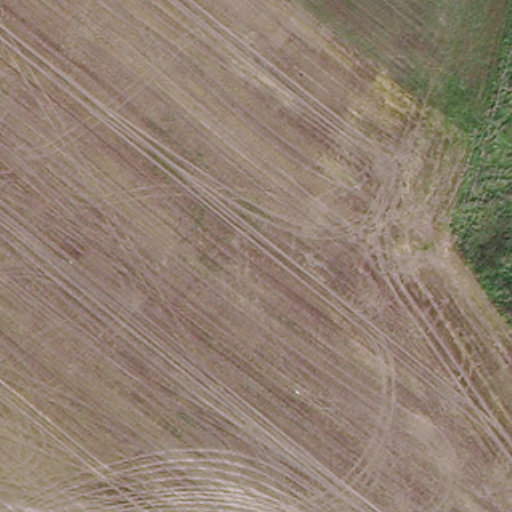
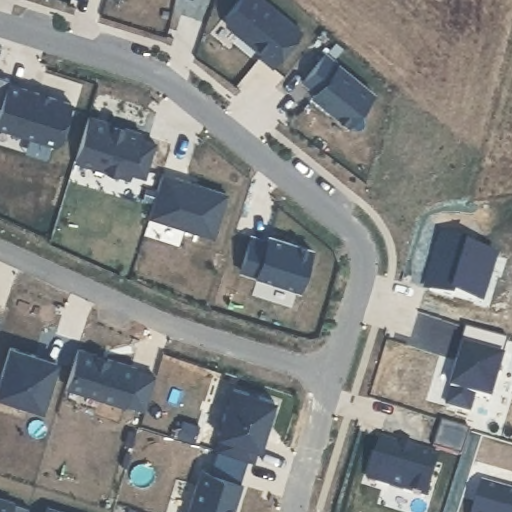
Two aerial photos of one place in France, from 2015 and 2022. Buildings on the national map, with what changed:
new [(261,0),(300,32),(272,68),(259,57),(261,55),(225,26),(224,19),(240,0),(261,0)]
new [(324,56),(372,94),(347,126),(312,97),(315,94),(302,84),(324,56)]
new [(8,80),(6,87),(0,108),(0,78),(8,80)]
new [(6,87),(20,92),(21,89),(39,95),(38,97),(47,100),(48,97),(71,105),(60,141),(53,145),(0,128),(0,108),(6,87)]
new [(88,119),(111,126),(110,128),(123,132),(124,130),(141,135),(140,140),(155,145),(145,177),(130,172),(128,178),(75,161),(88,119)]
new [(161,176),(226,195),(212,238),(148,218),(161,176)]
new [(267,242),(269,237),(311,251),(299,291),(241,272),(251,237),(267,242)]
new [(452,392),(450,391),(462,351),(459,350),(464,330),(508,344),(490,403),(474,399),(469,415),(447,408),(452,392)]
new [(55,363),(41,410),(0,398),(0,380),(9,349),(55,363)]
new [(95,357),(95,358),(106,362),(107,361),(135,370),(135,373),(154,380),(144,412),(124,406),(124,408),(65,388),(77,351),(95,357)]
new [(259,450),(256,449),(252,464),(215,452),(220,438),(217,437),(232,390),(273,402),(259,450)]
new [(380,441),(439,459),(426,500),(367,481),(380,441)]
new [(512,512),(474,512),(482,486),(512,495),(512,512)]
new [(28,509),(27,512),(0,512),(0,500),(28,509)]

